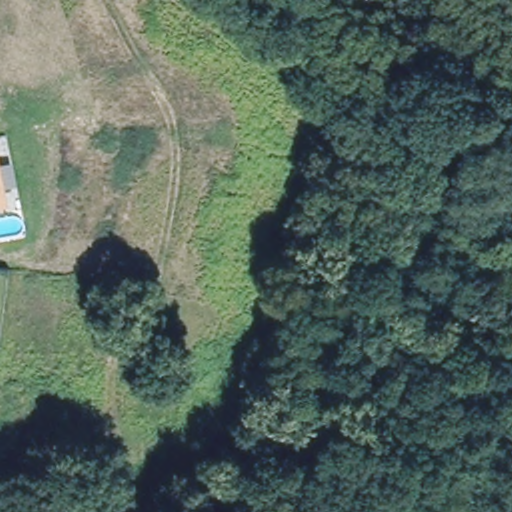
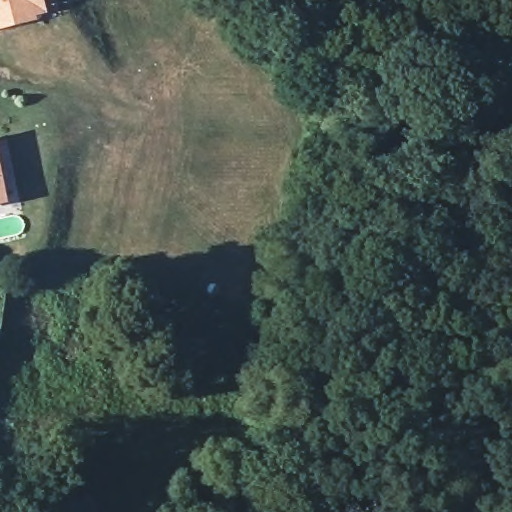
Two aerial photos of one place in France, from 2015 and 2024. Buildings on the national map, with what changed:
new [(41,13),(42,20),(0,29),(0,0),(46,0),(48,10),(41,13)]
unchanged [(12,202),(0,204),(0,149),(12,202)]
unchanged [(100,512),(61,512),(93,497),(100,512)]

